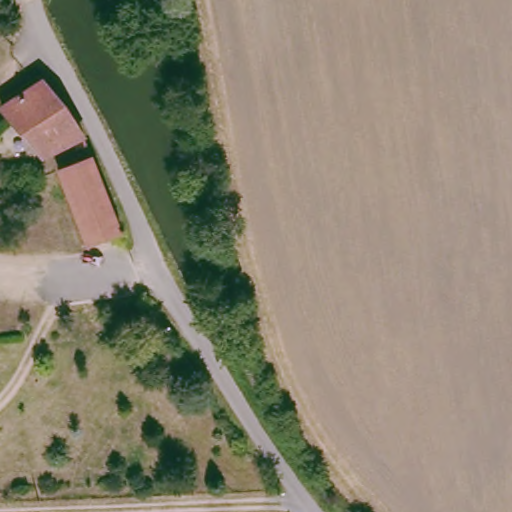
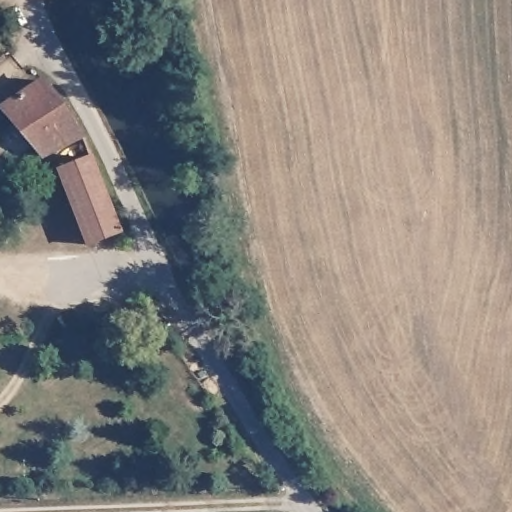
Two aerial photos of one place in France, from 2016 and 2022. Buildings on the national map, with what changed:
unchanged [(76,134),(33,154),(0,109),(0,99),(37,77),(68,119),(76,134)]
unchanged [(115,228),(81,240),(52,167),(84,152),(115,228)]

